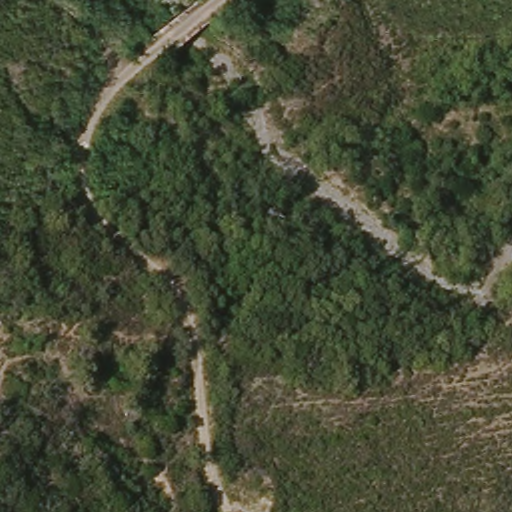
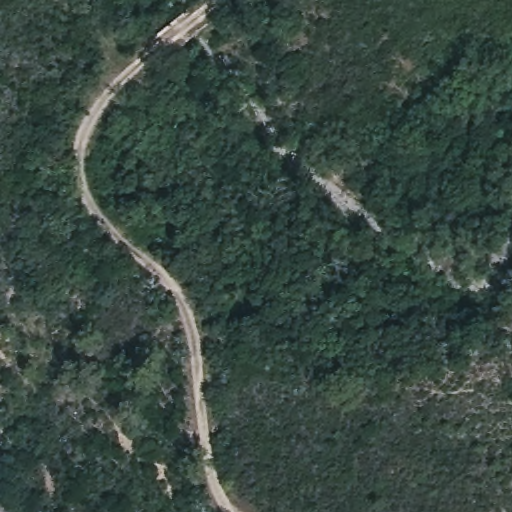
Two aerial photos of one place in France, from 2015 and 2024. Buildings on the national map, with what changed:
unchanged [(400,117),(398,92),(418,91),(420,113),(400,117)]

